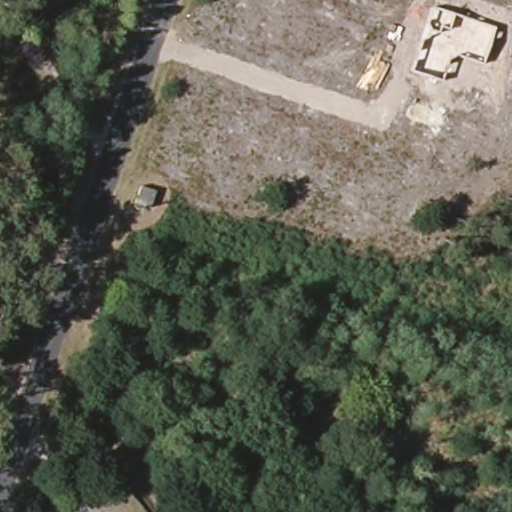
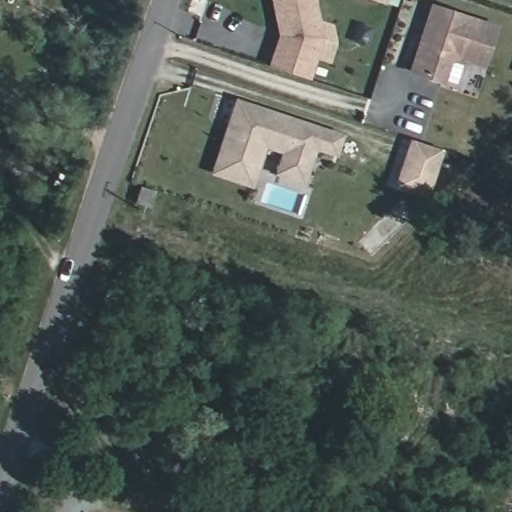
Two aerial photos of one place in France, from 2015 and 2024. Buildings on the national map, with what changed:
new [(279,36),(271,0),(316,0),(324,39),(311,79),(269,65),(279,36)]
unchanged [(483,62),(456,55),(447,61),(442,80),(412,71),(422,39),(427,38),(429,28),(427,24),(433,7),(494,27),(483,62)]
new [(282,152),(261,146),(248,185),(210,172),(223,135),(226,125),(234,102),(338,137),(332,155),(312,148),(306,166),(300,182),(274,174),(280,157),(282,152)]
new [(409,137),(444,151),(427,199),(393,187),(409,137)]

